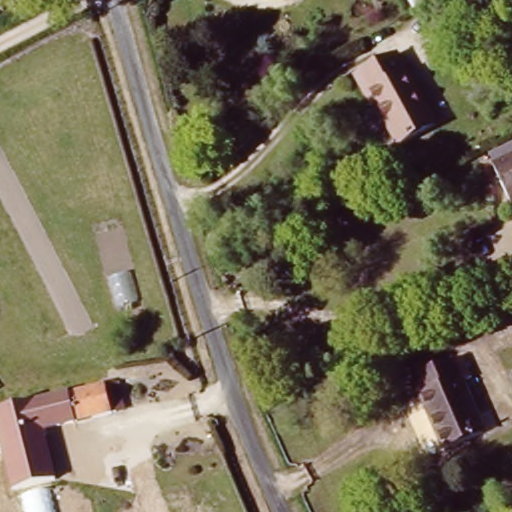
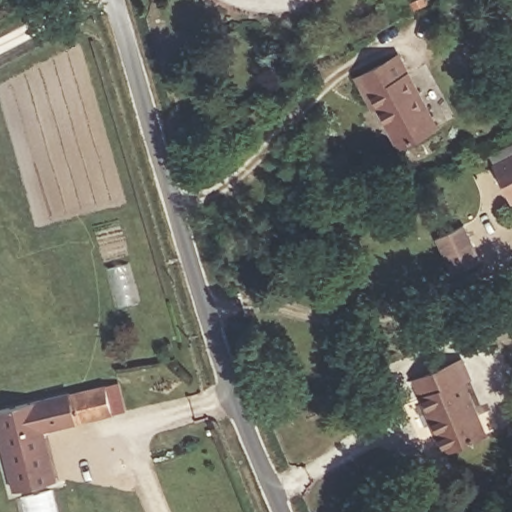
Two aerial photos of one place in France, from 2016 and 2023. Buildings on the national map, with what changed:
unchanged [(432,132),(392,150),(368,95),(357,100),(345,72),(396,50),(432,132)]
unchanged [(512,201),(510,202),(490,163),(512,153),(512,201)]
unchanged [(476,433),(434,446),(414,377),(456,365),(476,433)]
unchanged [(114,413),(46,429),(57,479),(12,492),(0,439),(0,408),(108,381),(114,413)]

